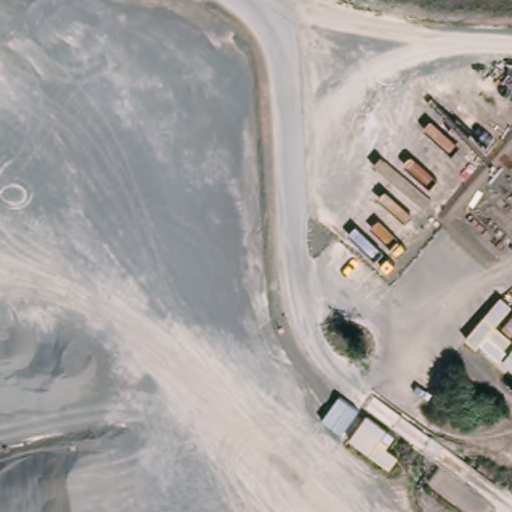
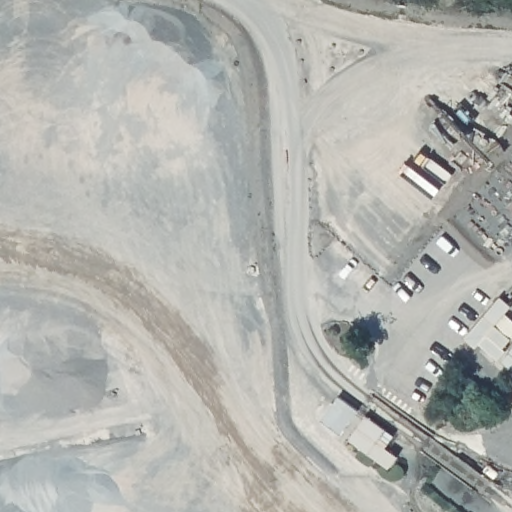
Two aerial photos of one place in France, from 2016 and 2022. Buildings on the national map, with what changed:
unchanged [(373,415),(394,429),(389,437),(396,443),(395,447),(408,457),(395,470),(353,442),(373,415)]

